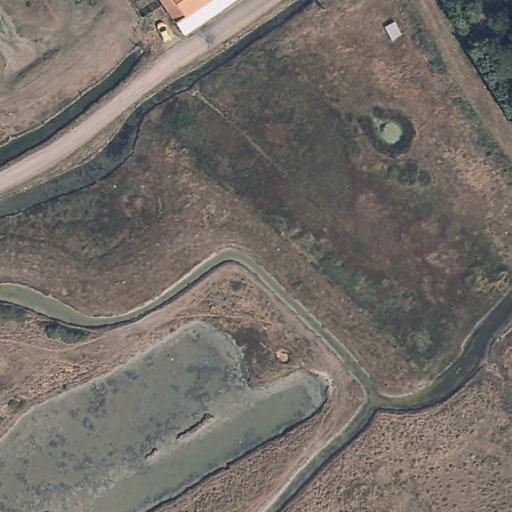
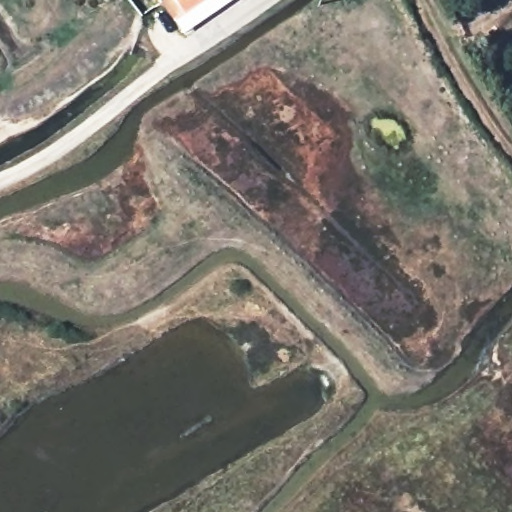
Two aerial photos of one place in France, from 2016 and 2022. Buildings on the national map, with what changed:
unchanged [(179,25),(166,0),(219,0),(179,25)]

